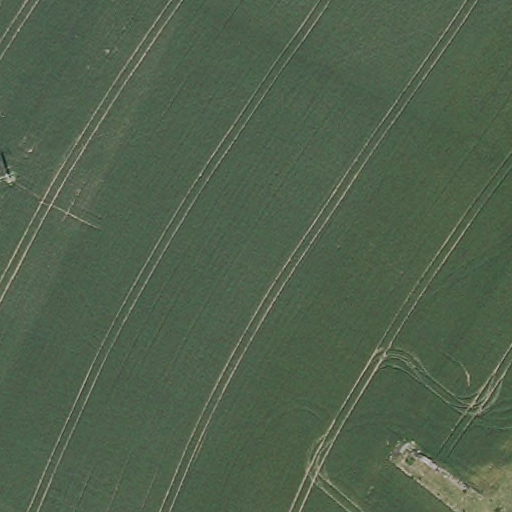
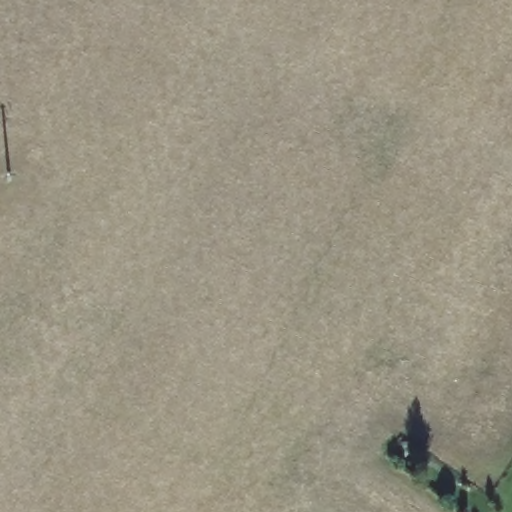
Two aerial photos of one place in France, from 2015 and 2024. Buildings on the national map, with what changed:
[]

